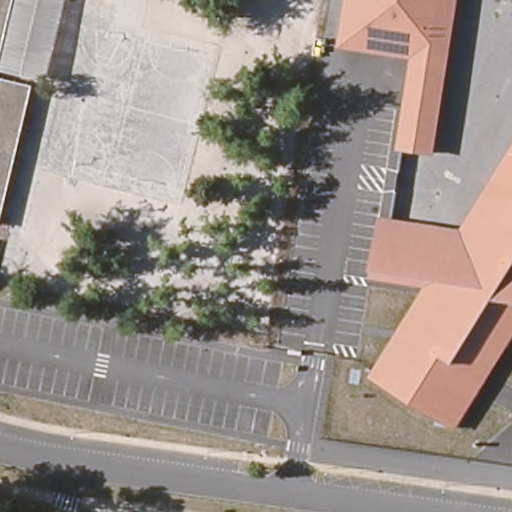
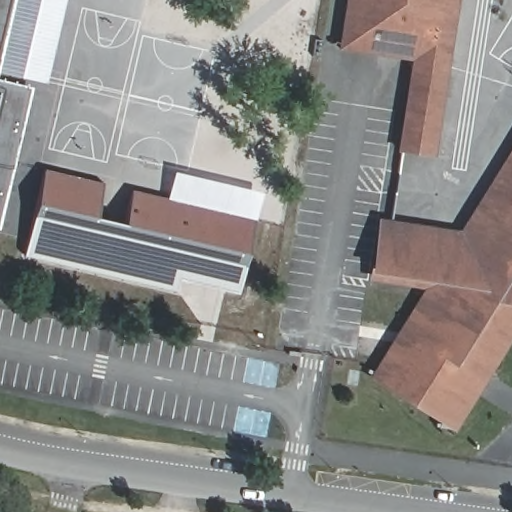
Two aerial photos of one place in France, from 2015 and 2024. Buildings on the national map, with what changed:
unchanged [(0,34),(0,0),(8,0),(0,34)]
unchanged [(45,80),(0,70),(0,34),(8,0),(65,0),(45,80)]
unchanged [(394,147),(407,64),(408,56),(337,44),(344,0),(446,0),(422,152),(394,147)]
unchanged [(0,196),(0,86),(25,91),(0,196)]
unchanged [(503,226),(503,223),(483,225),(484,236),(457,231),(501,174),(512,156),(512,325),(512,326),(512,336),(508,342),(503,339),(486,367),(482,364),(484,352),(505,226),(503,226)]
new [(23,254),(45,168),(104,183),(96,214),(124,221),(131,189),(167,197),(174,170),(263,191),(237,293),(179,277),(178,291),(23,254)]
unchanged [(440,418),(444,412),(378,371),(386,358),(434,280),(376,271),(384,220),(417,225),(418,220),(438,224),(438,228),(484,236),(483,225),(503,223),(503,226),(505,226),(484,352),(482,364),(477,371),(480,373),(485,376),(484,377),(456,422),(440,418)]

